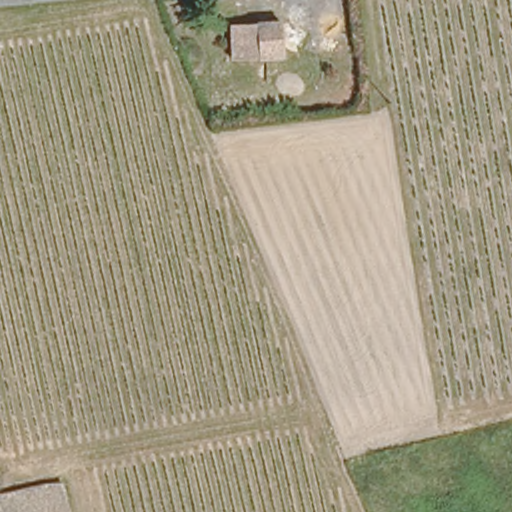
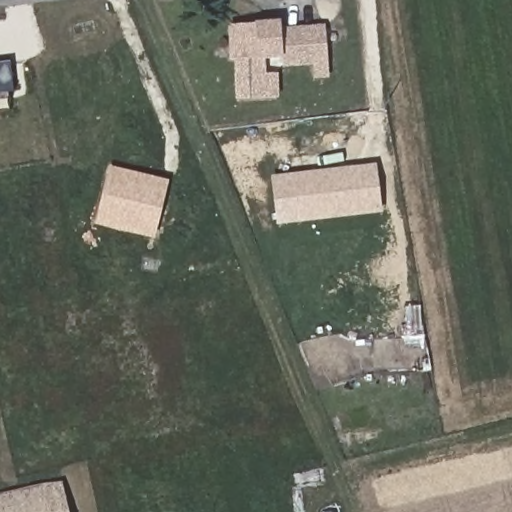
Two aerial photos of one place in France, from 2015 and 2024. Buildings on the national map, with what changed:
demolished [(233,60),(230,21),(281,17),(284,57),(233,60)]
new [(315,72),(315,57),(284,60),(283,53),(232,55),(231,21),(281,18),(281,28),(326,25),(329,56),(330,71),(315,72)]
new [(265,74),(278,73),(279,99),(235,100),(235,55),(265,54),(265,74)]
new [(13,92),(0,94),(0,62),(9,61),(13,92)]
new [(375,165),(380,214),(276,226),(270,176),(375,165)]
new [(118,168),(168,180),(154,240),(101,227),(104,217),(96,215),(107,171),(118,168)]
unchanged [(45,487),(46,491),(65,487),(70,512),(0,512),(0,497),(45,487)]

